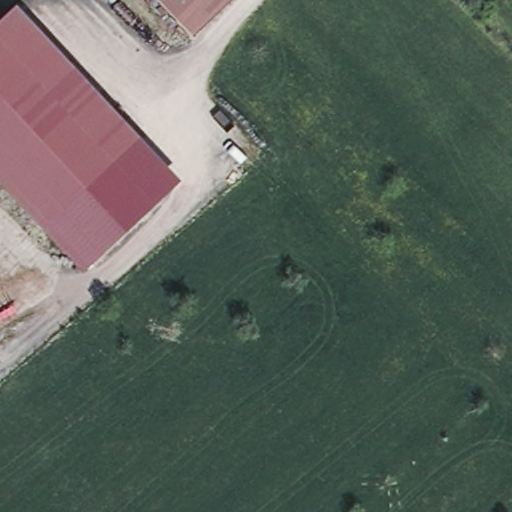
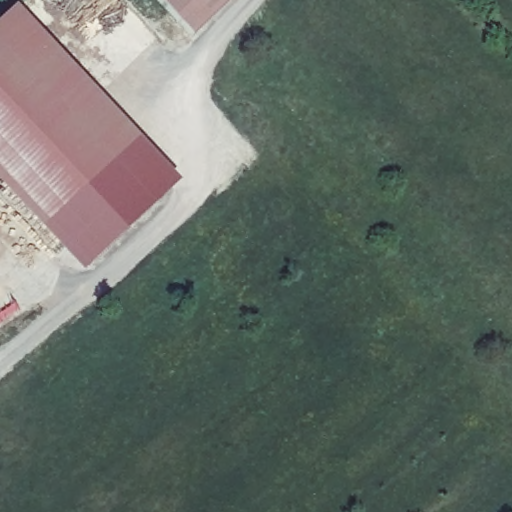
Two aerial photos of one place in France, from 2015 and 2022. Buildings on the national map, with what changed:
unchanged [(206,0),(180,25),(155,0),(206,0)]
unchanged [(180,25),(206,0),(228,0),(190,36),(180,25)]
unchanged [(83,270),(0,183),(0,21),(17,5),(182,182),(83,270)]

